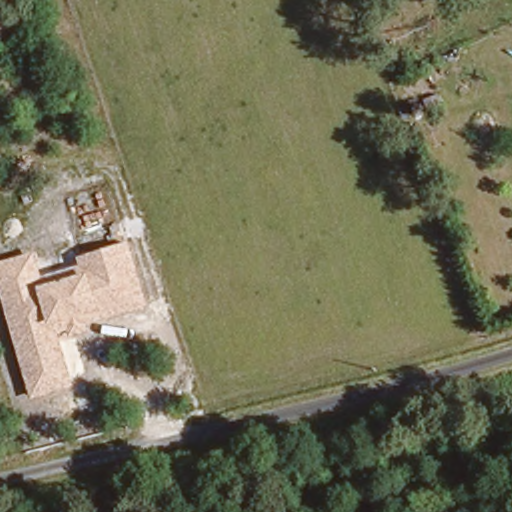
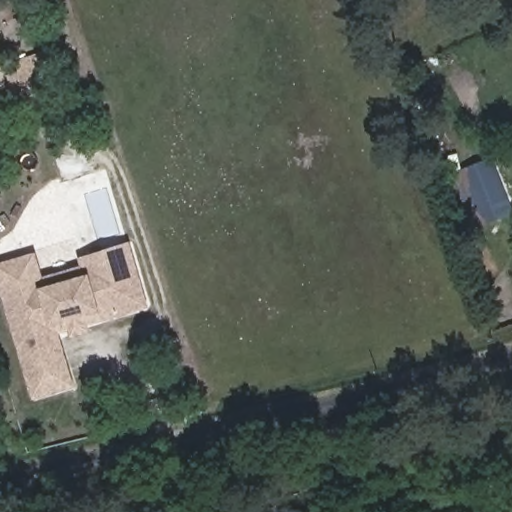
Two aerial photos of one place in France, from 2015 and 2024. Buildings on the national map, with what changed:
new [(463,206),(454,184),(459,182),(455,172),(488,159),(491,167),(495,165),(512,210),(512,213),(482,225),(472,202),(463,206)]
unchanged [(87,327),(89,332),(71,337),(69,332),(59,335),(74,387),(31,400),(0,293),(0,264),(36,252),(42,277),(80,266),(77,258),(129,244),(148,307),(87,327)]

